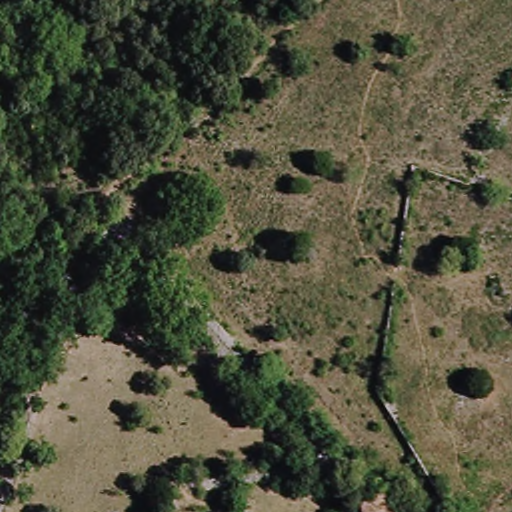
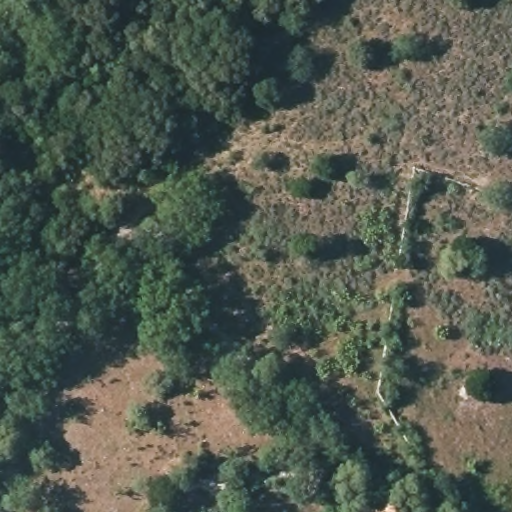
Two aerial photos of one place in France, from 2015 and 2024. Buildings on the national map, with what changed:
unchanged [(400,512),(369,512),(367,498),(396,493),(400,512)]

